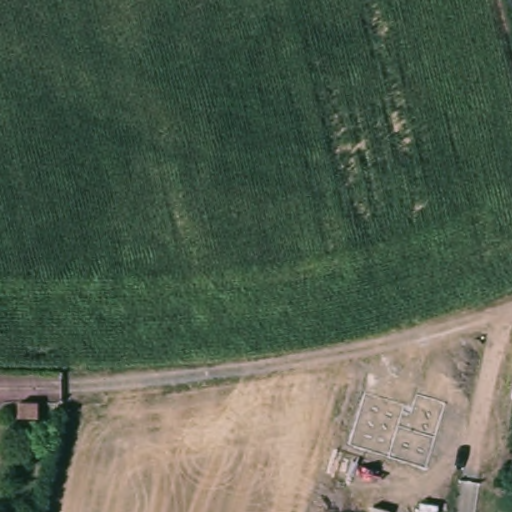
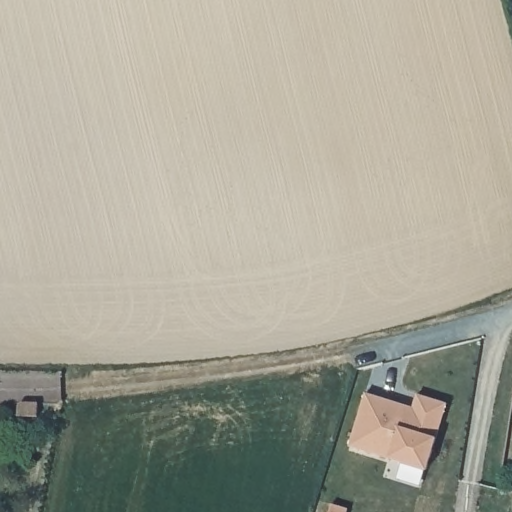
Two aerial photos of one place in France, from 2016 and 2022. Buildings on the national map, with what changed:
unchanged [(510,385),(512,370),(512,385),(510,385)]
new [(410,406),(417,409),(422,396),(451,406),(427,471),(351,444),(370,392),(410,406)]
unchanged [(512,414),(512,427),(510,427),(510,414),(512,414)]

